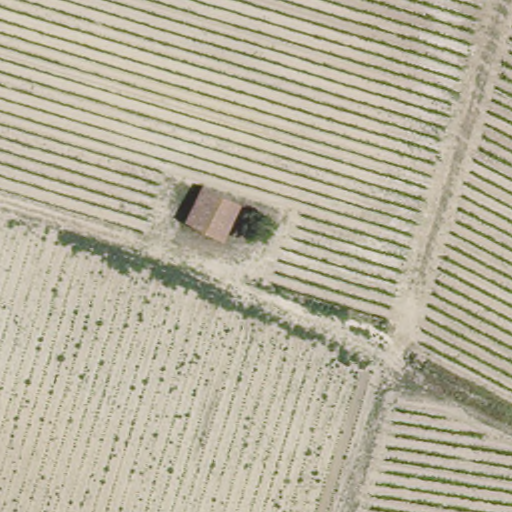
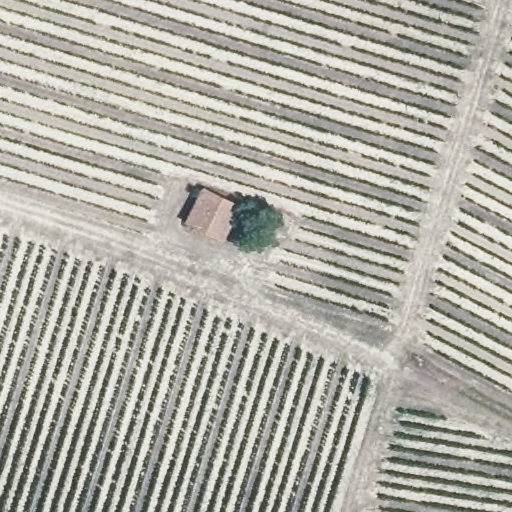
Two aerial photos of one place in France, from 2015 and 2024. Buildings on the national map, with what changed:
unchanged [(219,239),(181,219),(200,183),(237,203),(219,239)]

